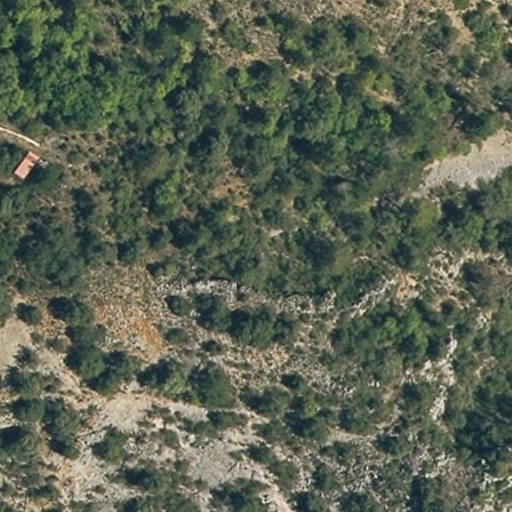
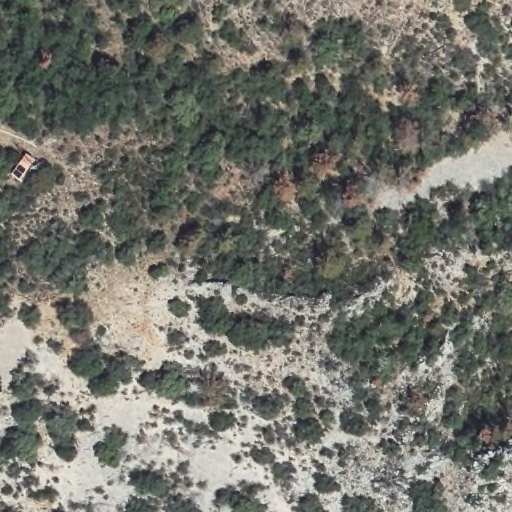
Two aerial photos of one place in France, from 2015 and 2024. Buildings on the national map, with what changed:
unchanged [(11,172),(25,149),(41,157),(25,184),(11,172)]

